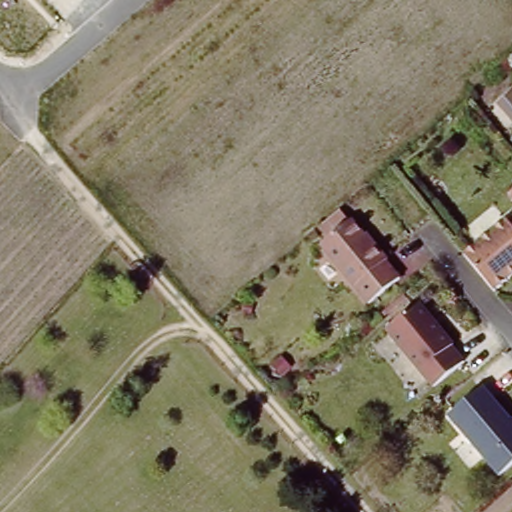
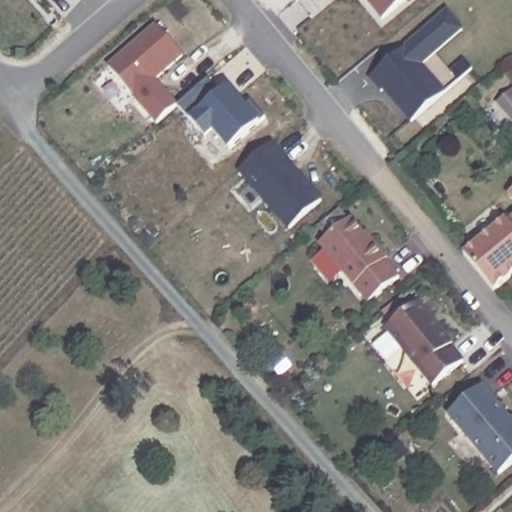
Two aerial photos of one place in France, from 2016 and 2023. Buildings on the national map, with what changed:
new [(366,0),(404,0),(382,19),(366,0)]
new [(447,10),(463,29),(423,66),(445,91),(410,124),(382,91),(380,93),(370,80),(447,10)]
new [(157,24),(183,57),(156,80),(177,104),(155,124),(107,65),(157,24)]
new [(180,107),(208,80),(220,93),(230,86),(246,105),(250,101),(265,117),(258,124),(228,150),(213,132),(207,139),(190,118),(180,107)]
unchanged [(511,91),(512,93),(512,122),(505,126),(492,105),(511,91)]
new [(274,144),(322,198),(288,229),(239,172),(274,144)]
unchanged [(512,193),(512,211),(503,198),(512,193)]
unchanged [(512,221),(512,278),(490,296),(460,257),(512,221)]
unchanged [(317,248),(350,225),(398,284),(367,310),(317,248)]
unchanged [(426,324),(435,335),(437,333),(449,347),(447,349),(459,364),(430,389),(382,334),(414,306),(428,322),(426,324)]
unchanged [(482,390),(512,427),(512,466),(490,482),(446,426),(482,390)]

